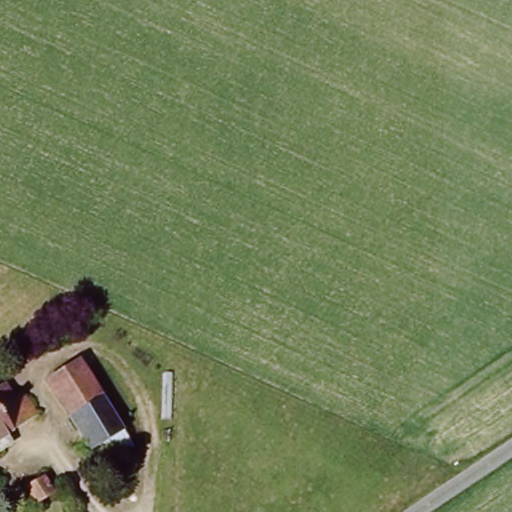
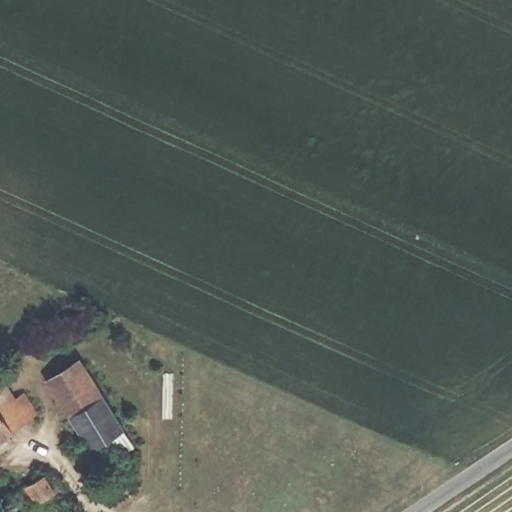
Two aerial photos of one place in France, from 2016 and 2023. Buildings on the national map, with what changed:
unchanged [(88,348),(139,444),(99,470),(45,372),(88,348)]
unchanged [(13,389),(22,404),(28,401),(40,424),(0,446),(0,396),(13,389)]
unchanged [(61,491),(36,507),(22,487),(48,468),(61,491)]

